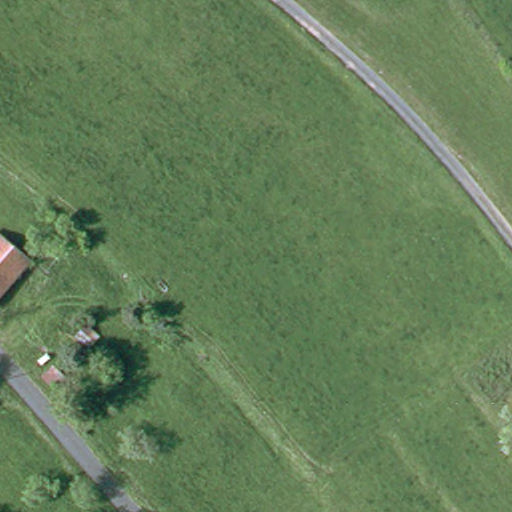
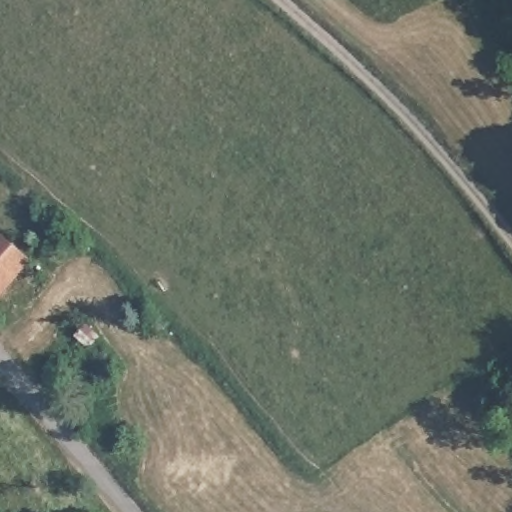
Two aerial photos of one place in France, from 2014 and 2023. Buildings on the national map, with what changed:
unchanged [(11,279),(0,291),(0,241),(25,263),(11,279)]

